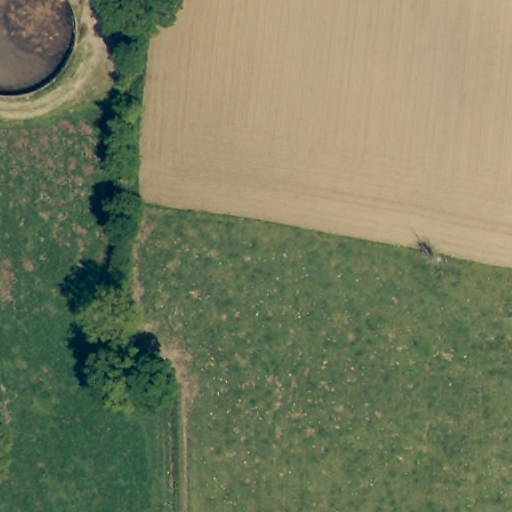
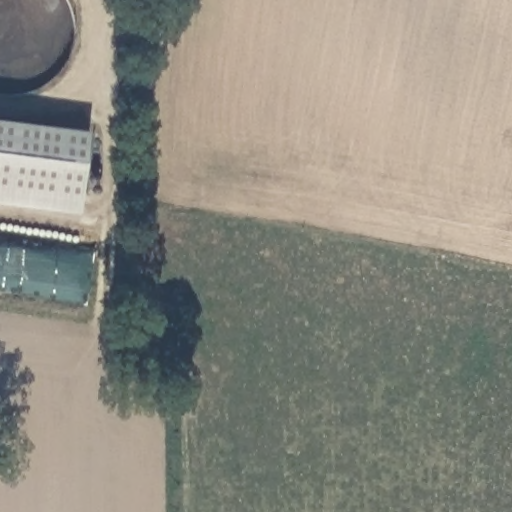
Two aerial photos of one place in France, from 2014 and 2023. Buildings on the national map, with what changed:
new [(88,132),(77,215),(0,205),(0,120),(88,132)]

